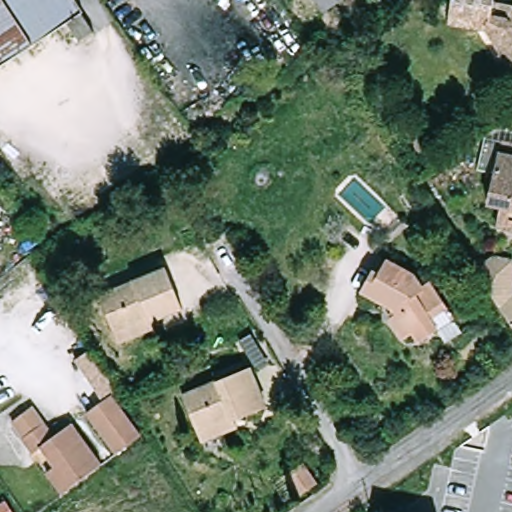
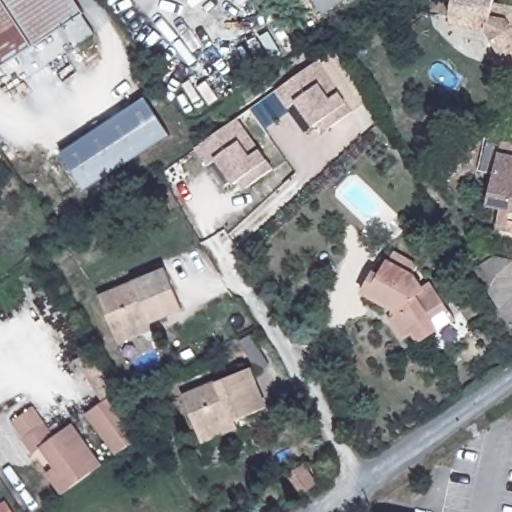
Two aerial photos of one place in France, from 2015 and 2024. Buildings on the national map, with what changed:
unchanged [(99,37),(85,47),(70,25),(0,70),(0,0),(78,0),(87,14),(84,15),(99,37)]
unchanged [(318,0),(346,0),(327,13),(318,0)]
unchanged [(512,10),(512,75),(508,78),(497,62),(505,57),(490,34),(454,22),(457,12),(461,0),(501,0),(500,5),(512,10)]
new [(334,49),(367,103),(325,132),(319,123),(313,126),(296,102),(287,108),(275,90),(334,49)]
new [(87,190),(62,154),(147,99),(171,135),(87,190)]
new [(238,117),(260,150),(268,160),(266,162),(272,171),(244,190),(239,182),(235,185),(216,160),(208,166),(195,147),(238,117)]
unchanged [(505,229),(509,210),(496,207),(508,144),(512,144),(512,230),(505,229)]
unchanged [(456,342),(446,326),(426,339),(421,330),(412,336),(399,317),(405,313),(401,306),(369,289),(387,256),(422,275),(429,286),(436,282),(452,307),(469,333),(456,342)]
unchanged [(502,310),(475,269),(494,256),(512,260),(512,326),(502,310)]
unchanged [(127,346),(123,338),(106,305),(172,270),(190,307),(160,323),(162,328),(127,346)]
unchanged [(209,442),(204,433),(187,397),(253,365),(272,404),(240,420),(243,425),(209,442)]
unchanged [(146,433),(134,443),(122,452),(91,413),(115,395),(146,433)]
unchanged [(53,472),(59,468),(44,448),(38,453),(27,438),(29,437),(16,420),(35,405),(58,436),(62,433),(75,423),(107,465),(91,476),(75,488),(69,494),(53,472)]
unchanged [(299,494),(286,476),(303,463),(316,482),(299,494)]
unchanged [(21,512),(3,512),(16,504),(21,512)]

